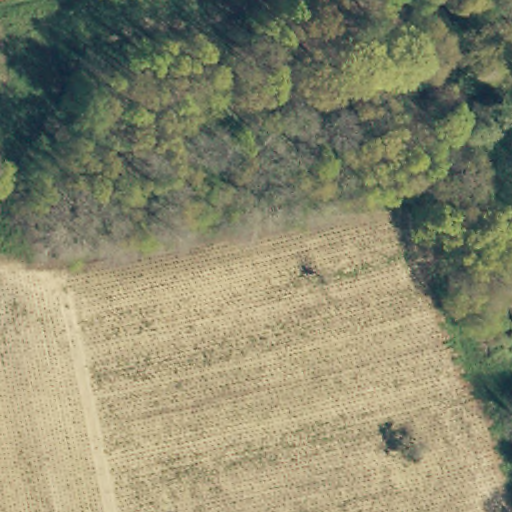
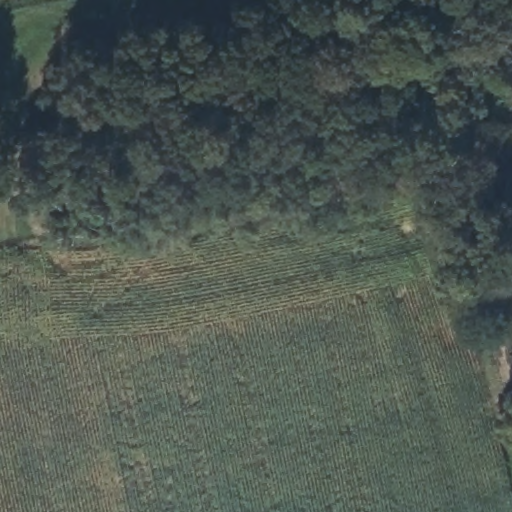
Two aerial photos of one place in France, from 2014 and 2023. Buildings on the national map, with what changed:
[]

